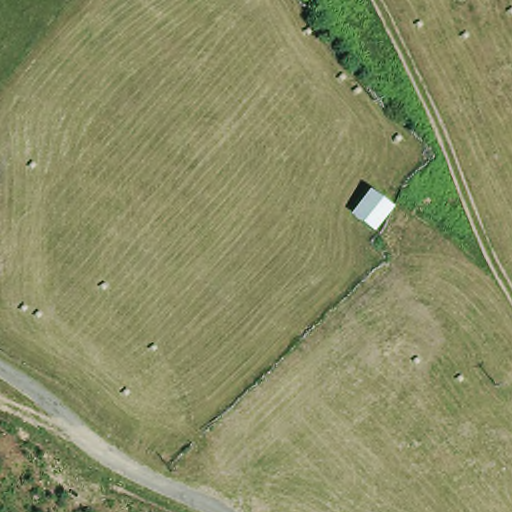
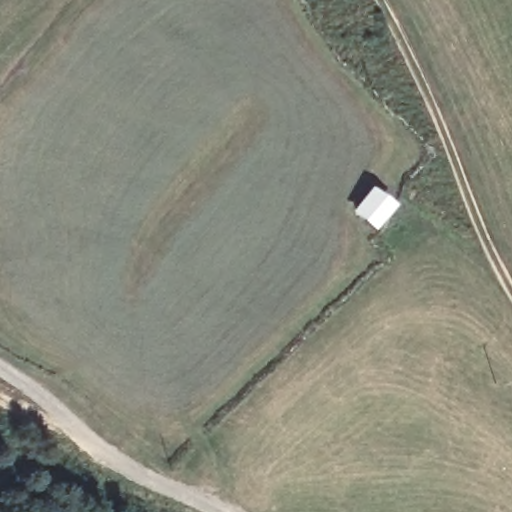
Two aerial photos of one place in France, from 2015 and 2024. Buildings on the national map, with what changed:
unchanged [(375,237),(352,215),(368,191),(398,207),(375,237)]

